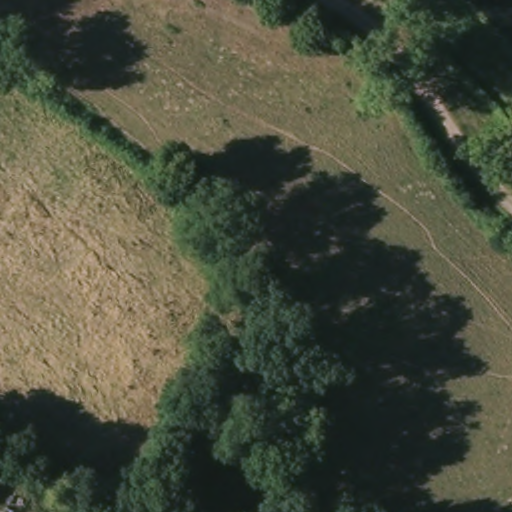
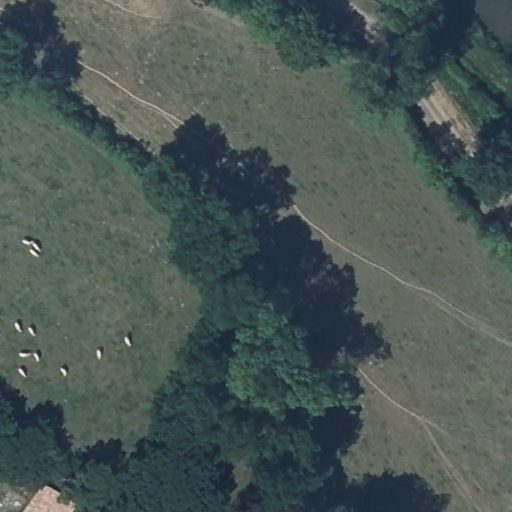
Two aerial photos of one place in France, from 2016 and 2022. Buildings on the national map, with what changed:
new [(74,507),(71,512),(23,512),(40,486),(74,507)]

